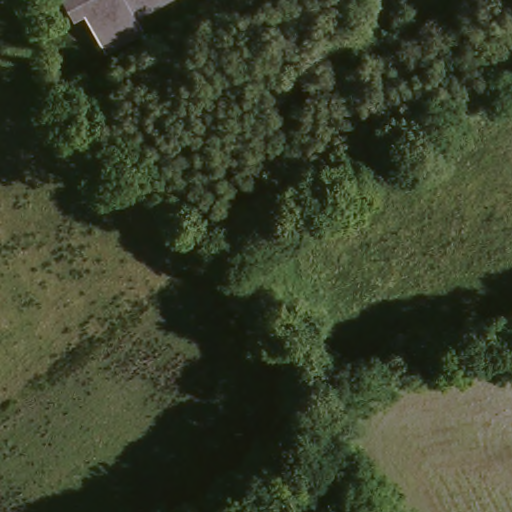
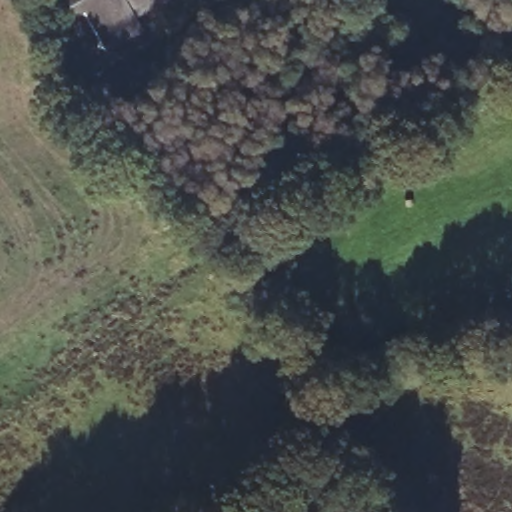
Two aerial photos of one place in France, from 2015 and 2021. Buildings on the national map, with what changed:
unchanged [(149,27),(108,49),(82,0),(157,0),(140,9),(149,27)]

